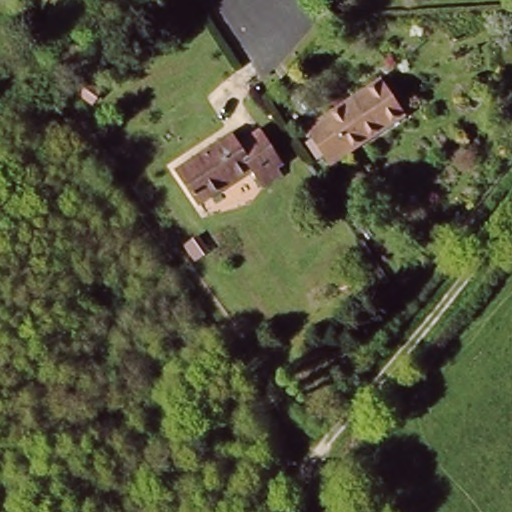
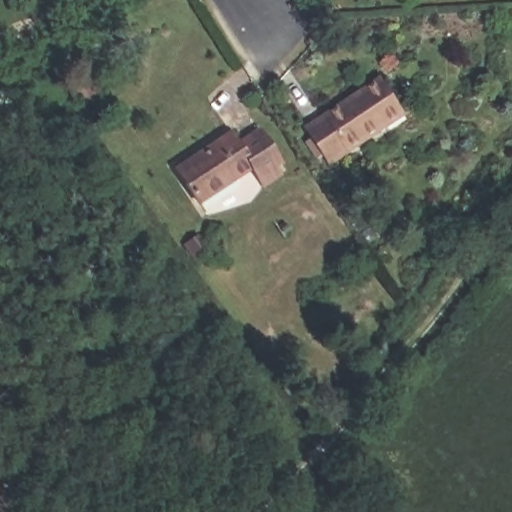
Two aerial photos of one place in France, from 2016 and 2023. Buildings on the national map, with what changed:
unchanged [(309,130),(382,84),(404,115),(331,162),(309,130)]
unchanged [(288,175),(278,182),(281,187),(266,197),(256,180),(206,212),(186,183),(248,144),(253,151),(266,143),(288,175)]

